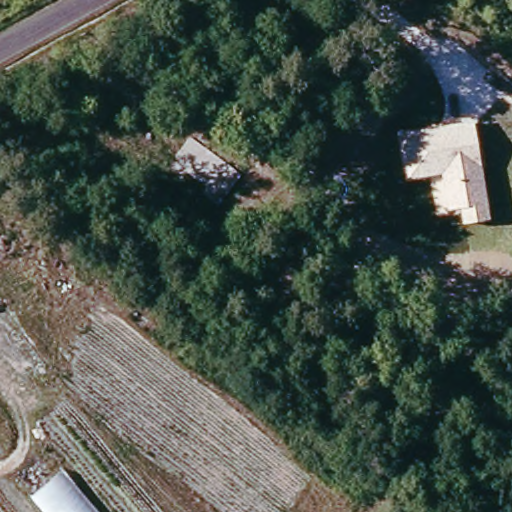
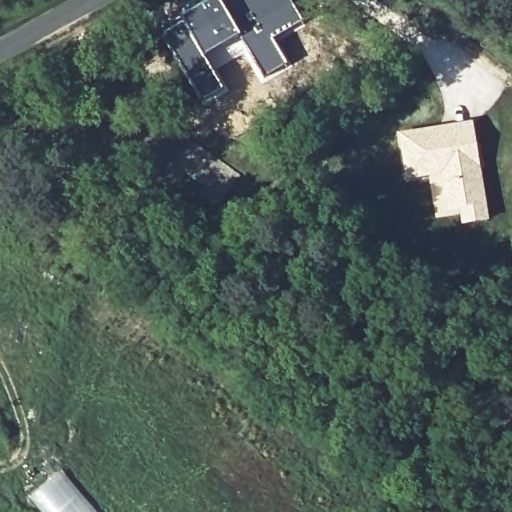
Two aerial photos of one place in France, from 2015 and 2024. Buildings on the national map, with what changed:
new [(210,0),(219,0),(240,41),(228,47),(234,58),(213,71),(224,91),(201,105),(159,34),(210,0)]
new [(304,24),(274,41),(289,65),(263,81),(245,51),(240,41),(219,0),(290,0),(304,24)]
unchanged [(459,207),(446,210),(441,174),(407,179),(399,132),(473,121),(489,220),(462,224),(459,207)]
unchanged [(44,512),(31,497),(62,468),(99,512),(44,512)]

